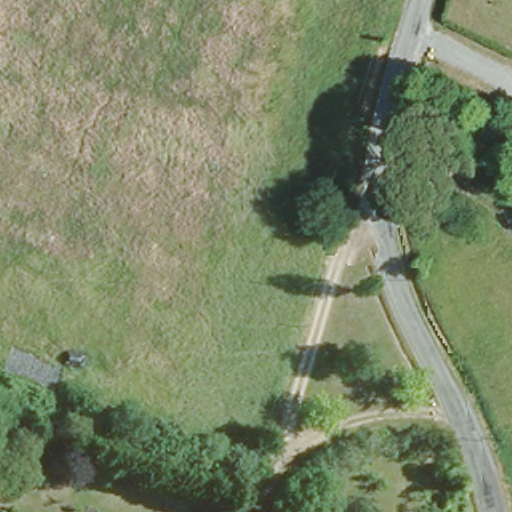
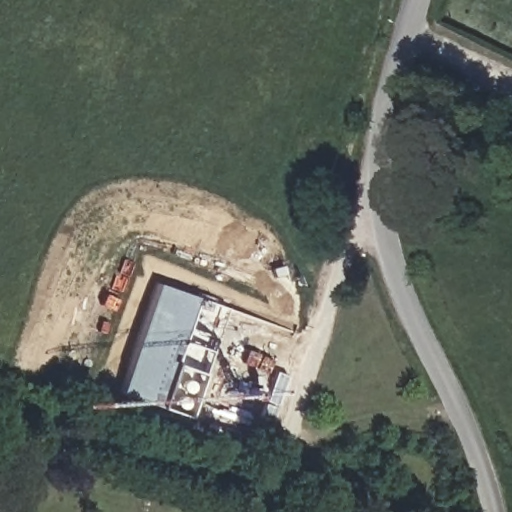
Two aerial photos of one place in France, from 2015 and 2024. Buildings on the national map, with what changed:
new [(161,285),(226,308),(190,417),(121,395),(161,285)]

